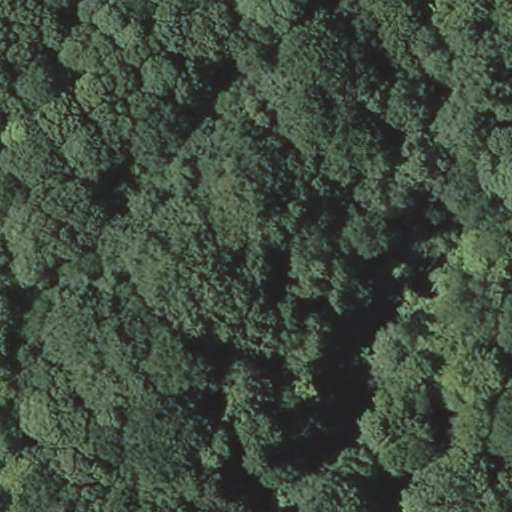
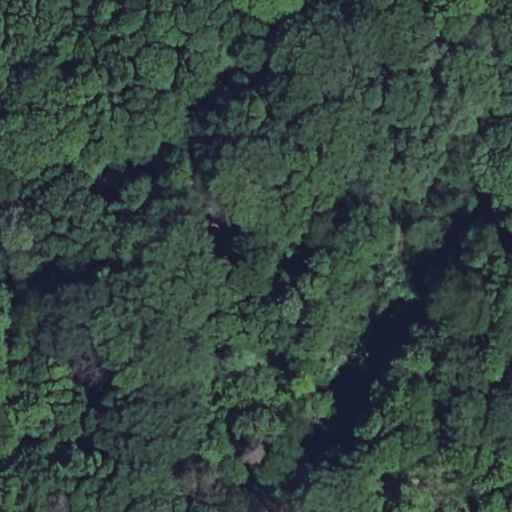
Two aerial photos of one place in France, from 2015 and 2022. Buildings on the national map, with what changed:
unchanged [(512,121),(512,136),(325,365),(304,355),(501,107),(512,121)]

